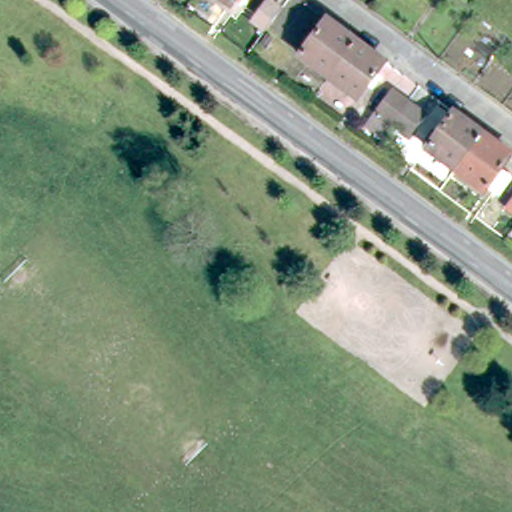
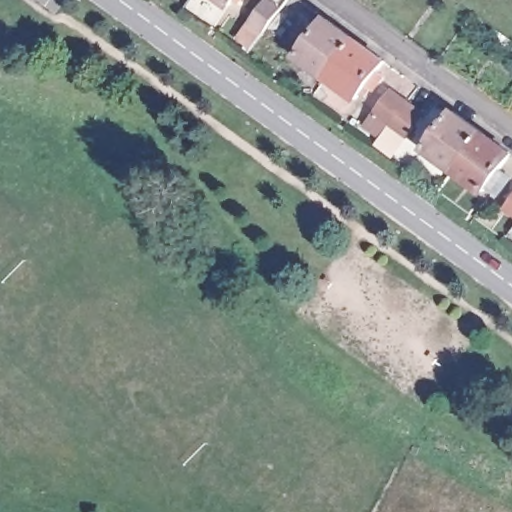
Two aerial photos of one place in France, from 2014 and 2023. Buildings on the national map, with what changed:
unchanged [(235,6),(232,4),(229,9),(218,0),(240,0),(235,6)]
unchanged [(264,34),(250,24),(266,1),(280,11),(264,34)]
unchanged [(303,54),(307,49),(303,45),(312,35),(315,38),(331,17),(360,37),(332,75),(303,54)]
unchanged [(360,37),(387,59),(389,60),(373,80),(377,84),(369,94),(365,91),(361,97),(332,75),(360,37)]
unchanged [(413,133),(397,121),(380,109),(395,86),(413,100),(428,111),(413,133)]
unchanged [(430,146),(434,141),(430,137),(437,127),(442,130),(457,109),(487,130),(459,168),(430,146)]
unchanged [(487,130),(512,150),(512,155),(502,169),(512,176),(512,180),(502,192),(490,185),(487,190),(459,168),(487,130)]
unchanged [(507,203),(512,196),(512,206),(507,203)]

